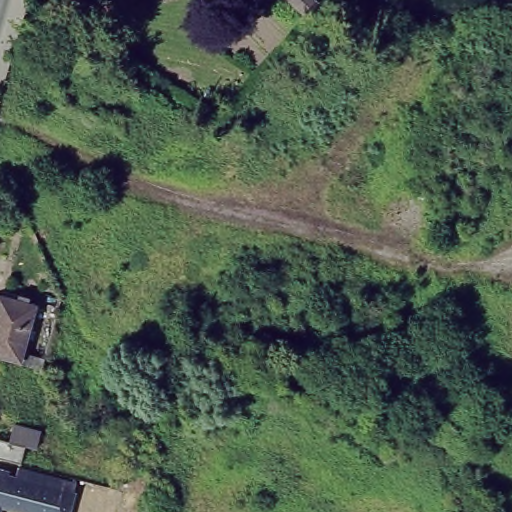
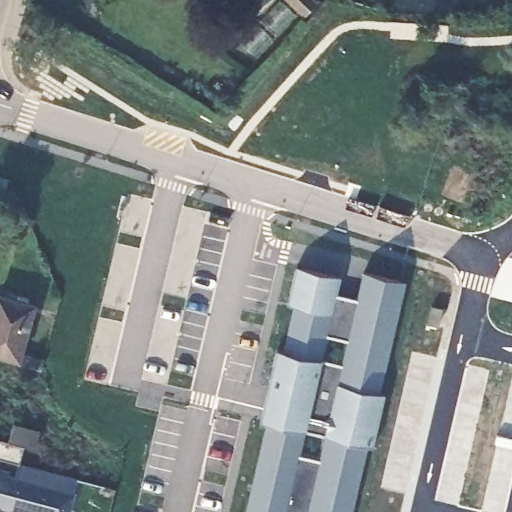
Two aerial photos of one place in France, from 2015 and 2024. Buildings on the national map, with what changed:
unchanged [(265,0),(254,9),(248,0),(265,0)]
unchanged [(305,14),(289,0),(313,0),(316,3),(305,14)]
new [(263,434),(300,270),(339,281),(335,299),(357,304),(364,277),(404,287),(352,512),(244,512),(263,434)]
unchanged [(42,360),(40,365),(19,359),(19,357),(0,351),(0,291),(16,295),(17,290),(29,294),(27,299),(35,300),(22,349),(44,354),(42,360)]
unchanged [(8,419),(35,427),(30,444),(19,441),(15,459),(0,455),(0,436),(4,437),(8,419)]
unchanged [(4,467),(3,471),(10,473),(12,463),(70,478),(68,488),(62,512),(39,512),(0,502),(0,465),(4,467)]

